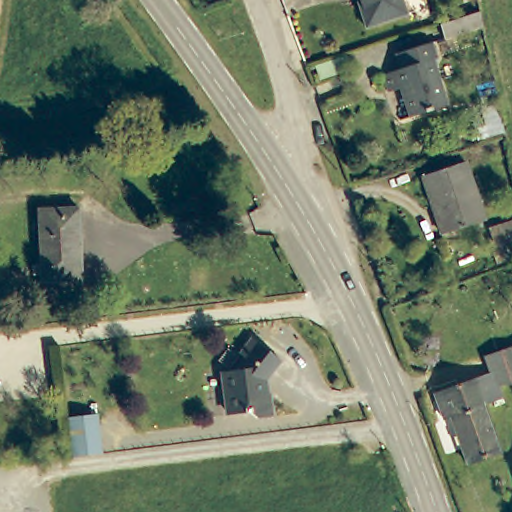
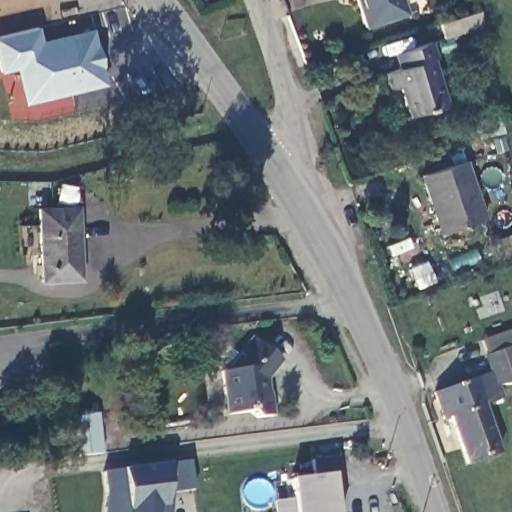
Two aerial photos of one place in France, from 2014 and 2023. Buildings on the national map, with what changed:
unchanged [(356,0),(402,0),(404,10),(364,24),(356,0)]
unchanged [(481,26),(443,39),(439,24),(478,11),(481,26)]
new [(35,43),(86,31),(92,55),(87,56),(90,70),(95,69),(99,85),(64,94),(63,87),(23,97),(16,69),(0,72),(0,36),(32,29),(35,43)]
unchanged [(447,99),(409,112),(398,83),(385,87),(380,72),(401,65),(396,49),(431,37),(438,58),(434,60),(447,99)]
unchanged [(484,220),(442,234),(423,176),(465,161),(484,220)]
unchanged [(45,285),(44,207),(83,207),(85,285),(45,285)]
unchanged [(280,358),(261,380),(262,392),(265,392),(267,415),(247,417),(247,415),(224,417),(222,397),(216,390),(215,372),(227,374),(242,356),(237,352),(251,336),(280,358)]
unchanged [(493,372),(487,356),(512,349),(512,382),(503,382),(504,401),(488,406),(503,453),(469,462),(453,416),(448,417),(439,390),(493,372)]
unchanged [(68,418),(98,415),(102,453),(72,457),(68,418)]
new [(337,512),(295,512),(290,480),(313,476),(309,460),(339,457),(343,488),(333,491),(337,512)]
new [(102,471),(190,460),(195,490),(165,495),(171,494),(170,512),(104,512),(105,492),(102,471)]

